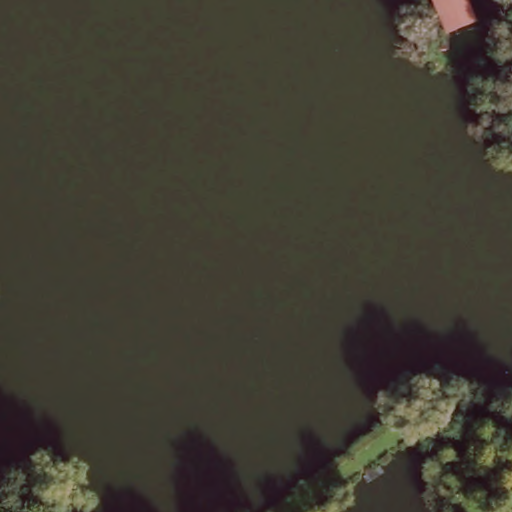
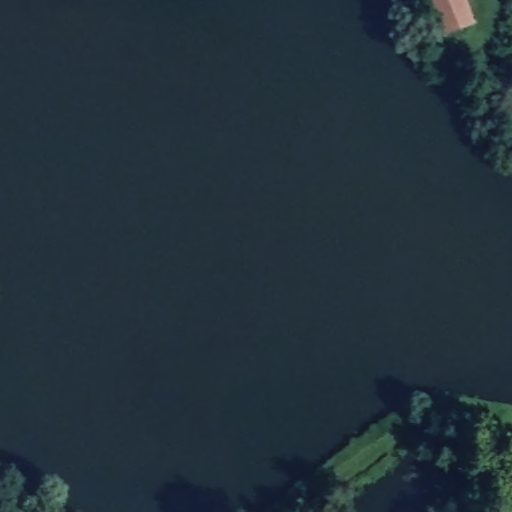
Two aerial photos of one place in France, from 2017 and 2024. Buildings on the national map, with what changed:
unchanged [(446,32),(435,0),(461,0),(469,25),(446,32)]

